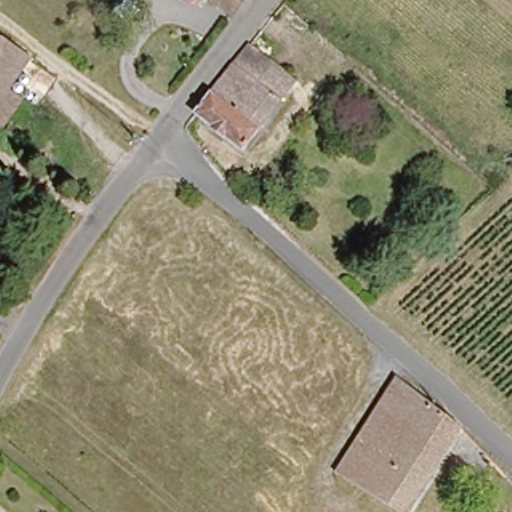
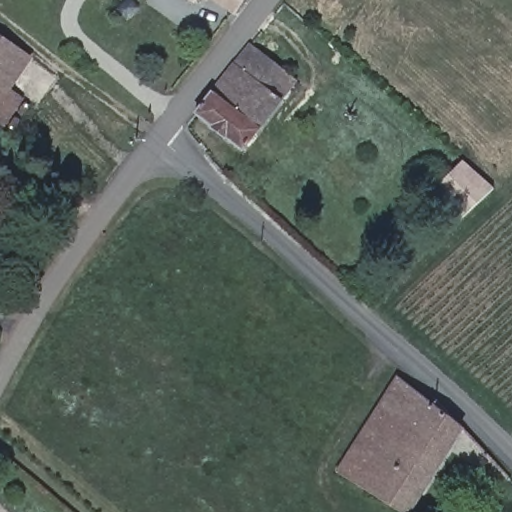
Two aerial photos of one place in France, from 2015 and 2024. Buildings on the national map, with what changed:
unchanged [(192,4),(186,0),(194,0),(192,4)]
unchanged [(232,13),(215,0),(241,0),(232,13)]
unchanged [(12,82),(0,98),(0,34),(30,58),(12,82)]
unchanged [(254,44),(298,84),(239,155),(193,113),(254,44)]
new [(461,217),(435,190),(463,159),(493,188),(461,217)]
unchanged [(448,422),(399,505),(355,478),(404,396),(448,422)]

